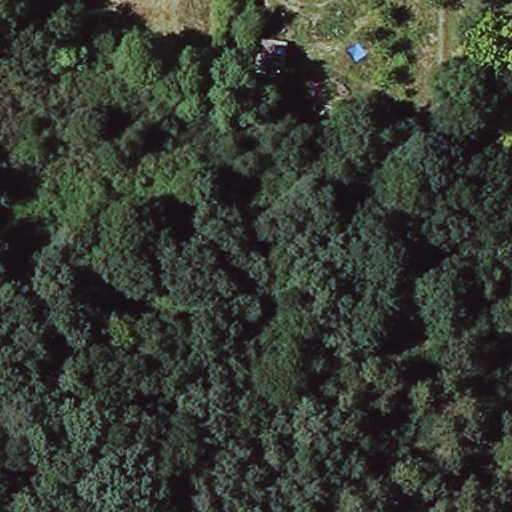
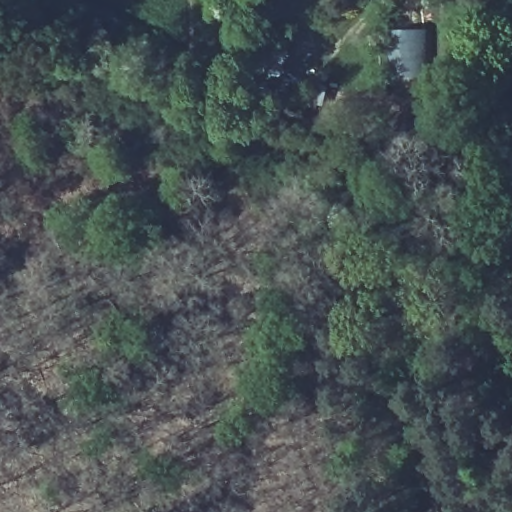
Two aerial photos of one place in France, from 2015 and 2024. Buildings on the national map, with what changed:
new [(396,80),(392,32),(421,32),(421,41),(427,41),(427,80),(417,80),(396,80)]

